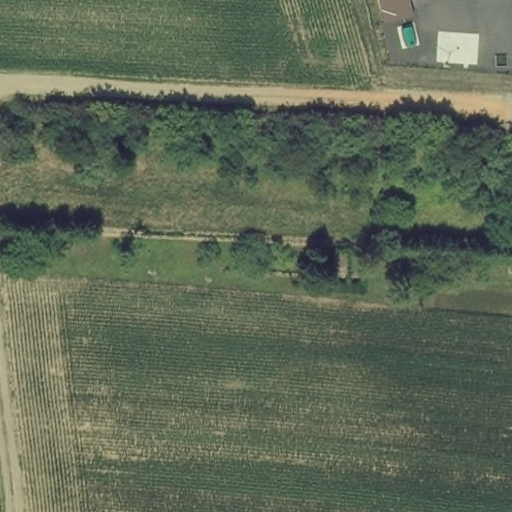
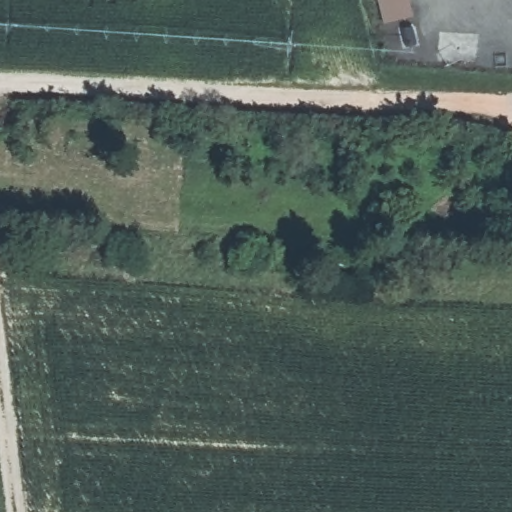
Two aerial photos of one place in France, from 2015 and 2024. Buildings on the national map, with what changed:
unchanged [(412,16),(384,23),(378,0),(408,0),(412,16)]
unchanged [(354,270),(326,270),(325,248),(352,249),(354,270)]

